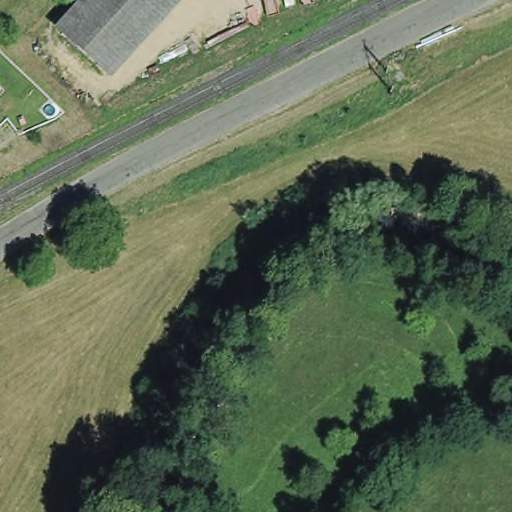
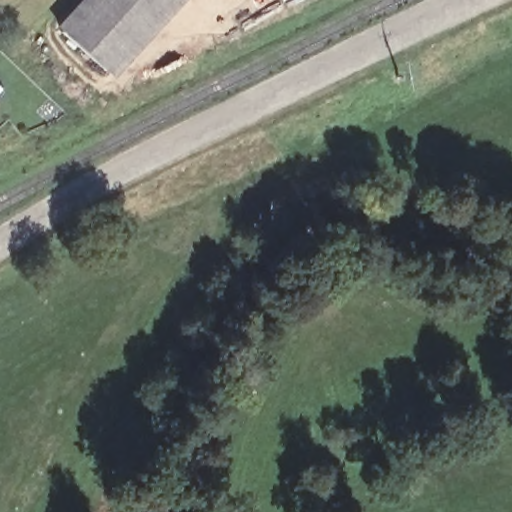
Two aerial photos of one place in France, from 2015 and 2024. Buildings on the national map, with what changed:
unchanged [(70,44),(61,37),(95,0),(177,0),(105,78),(70,44)]

